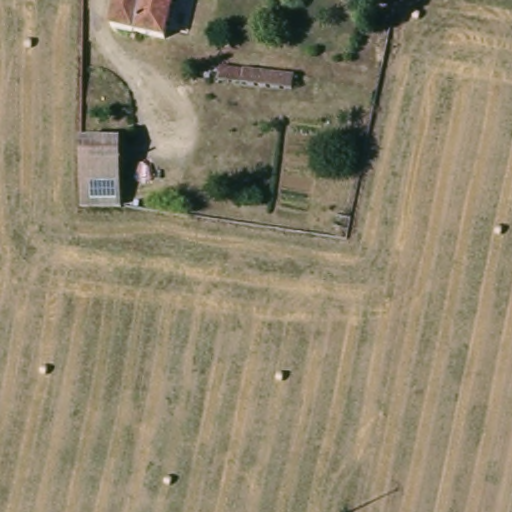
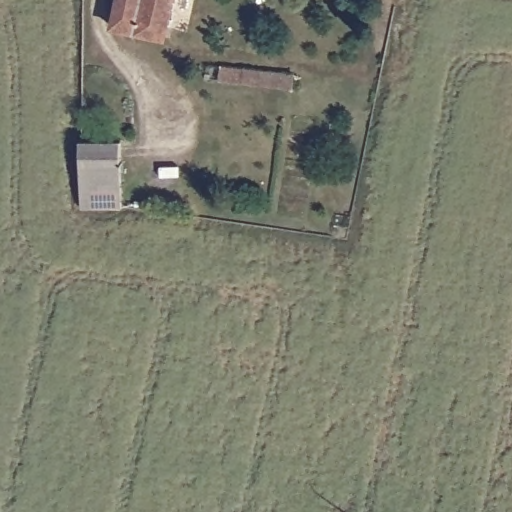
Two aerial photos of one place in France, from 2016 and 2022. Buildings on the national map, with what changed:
unchanged [(113,25),(119,0),(173,0),(166,38),(113,25)]
unchanged [(293,94),(221,79),(223,64),(296,78),(293,94)]
unchanged [(80,140),(121,143),(117,209),(80,210),(80,140)]

